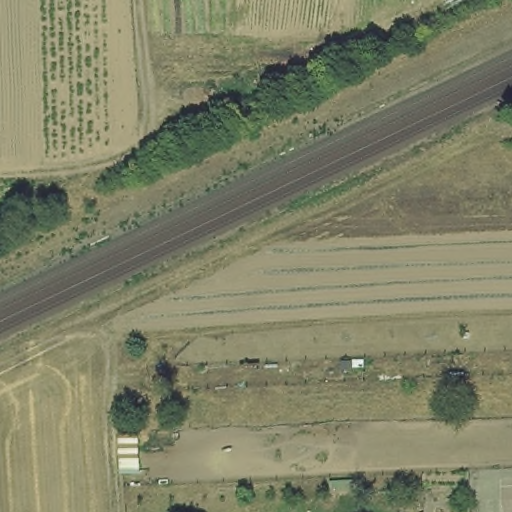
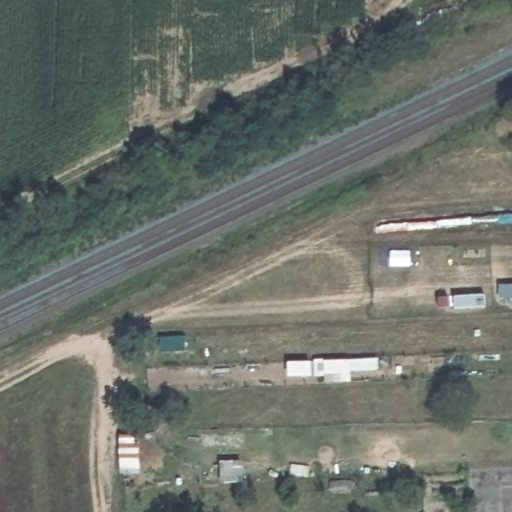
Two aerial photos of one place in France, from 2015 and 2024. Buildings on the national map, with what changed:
unchanged [(145,475),(121,477),(118,436),(144,435),(145,475)]

